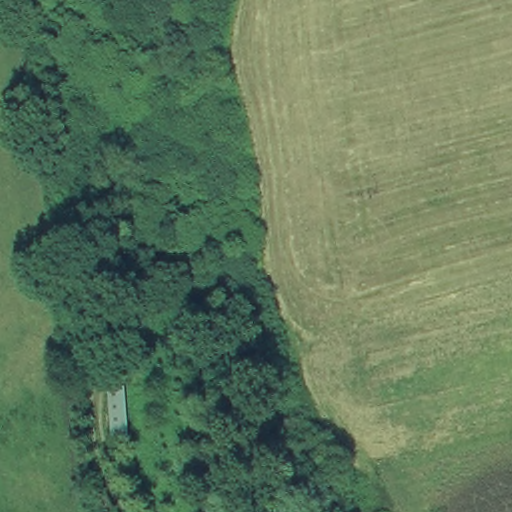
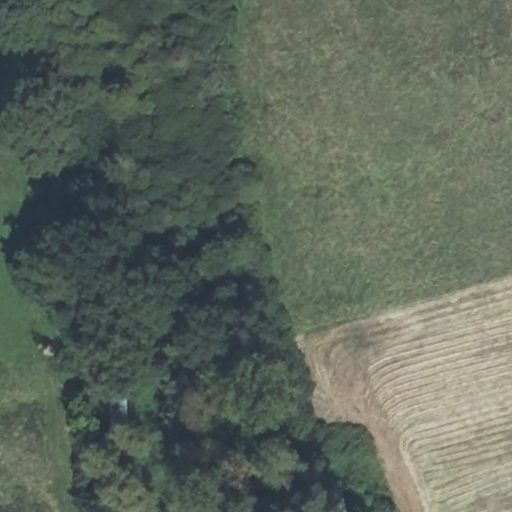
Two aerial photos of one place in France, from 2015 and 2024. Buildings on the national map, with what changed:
unchanged [(133,444),(114,445),(110,384),(128,384),(133,444)]

